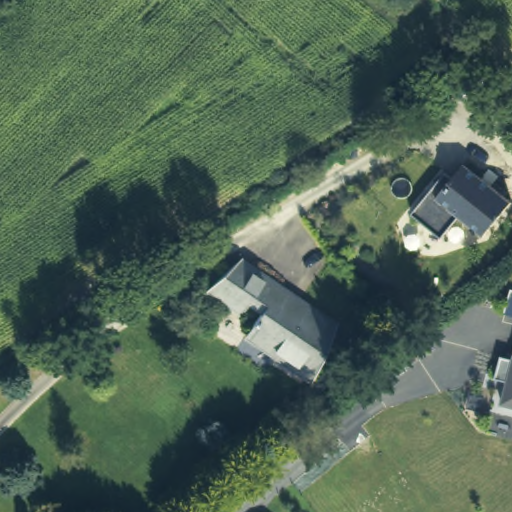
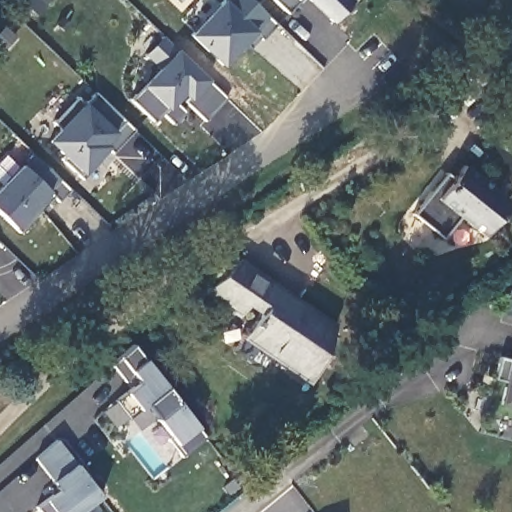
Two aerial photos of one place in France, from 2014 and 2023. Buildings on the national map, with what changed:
new [(251,48),(249,45),(242,52),(241,49),(224,69),(188,35),(223,0),(253,0),(277,22),(251,48)]
new [(288,11),(276,0),(298,0),(288,11)]
new [(334,22),(312,0),(355,0),(334,22)]
new [(206,121),(189,101),(184,94),(177,102),(187,111),(175,125),(161,113),(154,120),(132,99),(145,87),(142,83),(157,68),(144,56),(163,36),(178,50),(209,79),(228,97),(206,121)]
new [(113,151),(110,145),(83,173),(48,142),(87,103),(95,92),(135,129),(113,151)]
new [(59,201),(55,196),(18,232),(13,229),(0,216),(0,190),(23,164),(32,152),(72,189),(59,201)]
unchanged [(437,235),(407,211),(425,188),(441,169),(448,175),(459,161),(505,199),(479,232),(455,213),(437,235)]
unchanged [(266,310),(257,303),(249,314),(229,301),(227,305),(207,291),(243,258),(283,287),(280,292),(334,331),(315,380),(248,336),(266,310)]
unchanged [(512,292),(512,317),(506,315),(512,292)]
new [(182,455),(177,443),(146,405),(130,417),(118,399),(126,391),(138,383),(132,375),(125,379),(113,364),(121,357),(136,346),(144,358),(198,426),(205,437),(182,455)]
unchanged [(503,360),(512,362),(512,410),(505,408),(510,386),(498,384),(503,360)]
new [(100,496),(81,509),(83,512),(42,512),(36,504),(45,496),(58,488),(52,479),(34,455),(55,440),(74,462),(100,496)]

